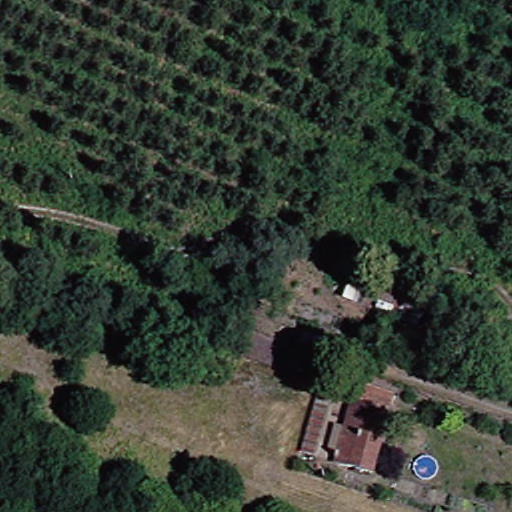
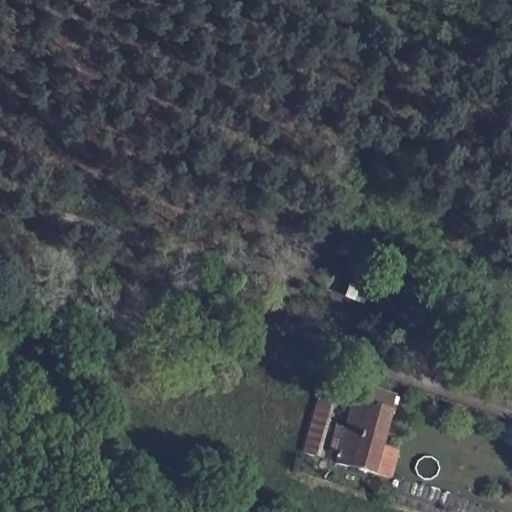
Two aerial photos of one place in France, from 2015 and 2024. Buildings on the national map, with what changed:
unchanged [(312,389),(327,392),(318,425),(313,442),(299,438),(312,389)]
unchanged [(380,469),(346,458),(365,395),(398,406),(380,469)]

